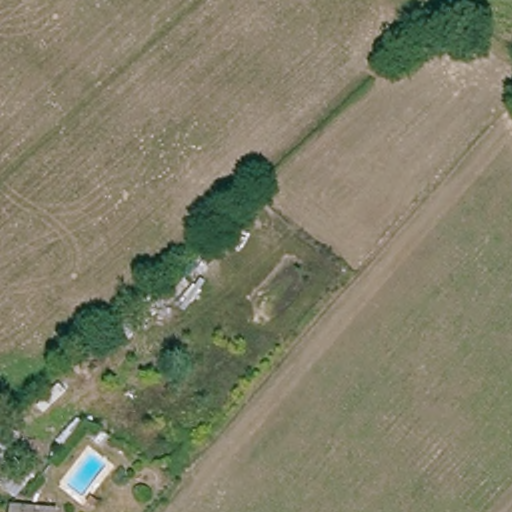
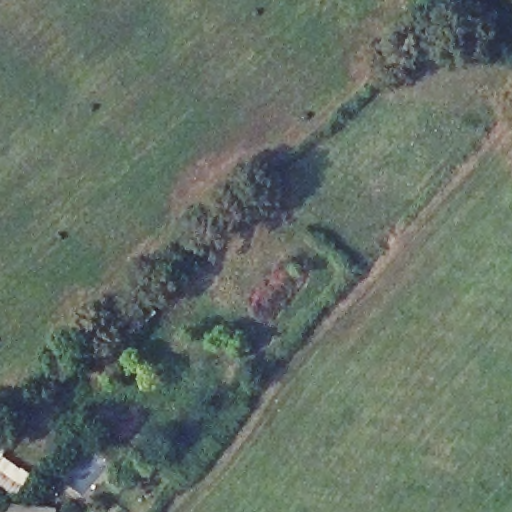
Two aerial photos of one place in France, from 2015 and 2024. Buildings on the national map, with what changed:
unchanged [(30,511),(44,512),(21,512),(22,511),(30,511)]

